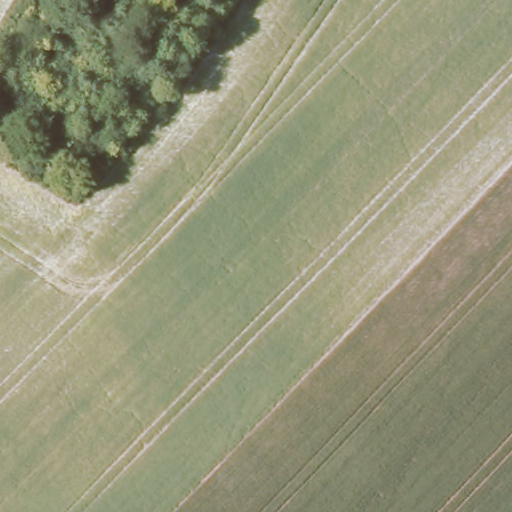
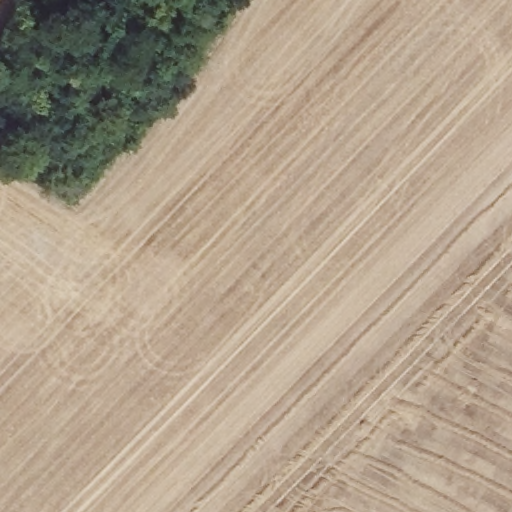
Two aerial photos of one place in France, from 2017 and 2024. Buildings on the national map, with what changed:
unchanged [(134,3),(131,0),(136,0),(134,3)]

